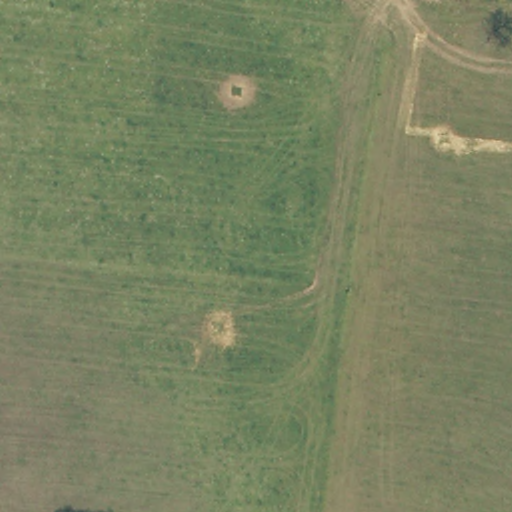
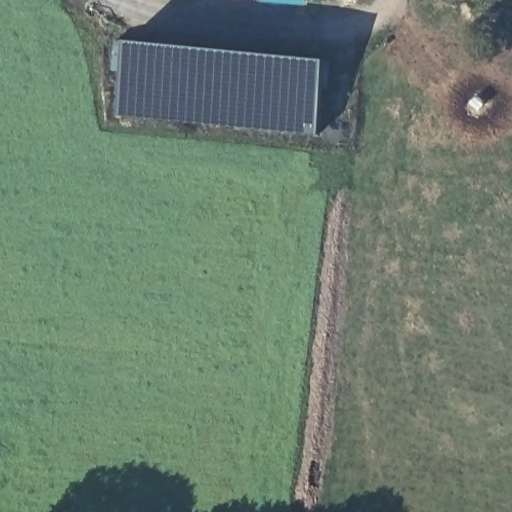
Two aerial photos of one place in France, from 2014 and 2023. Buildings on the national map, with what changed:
new [(319,135),(119,116),(127,43),(326,61),(319,135)]

